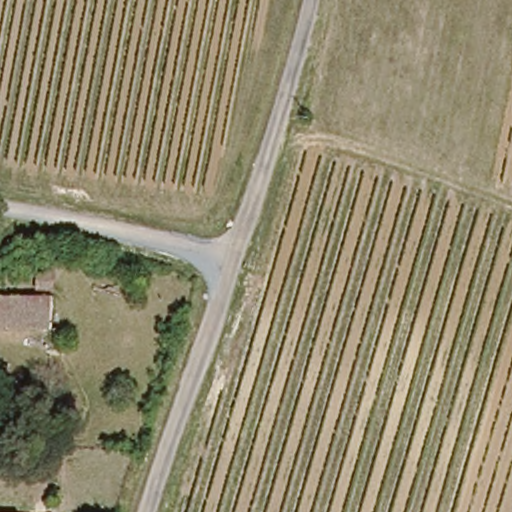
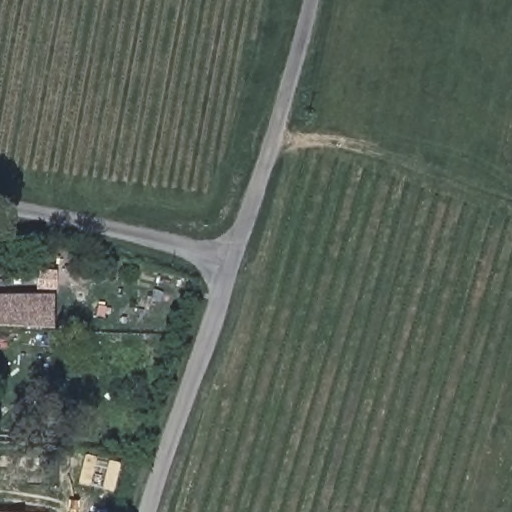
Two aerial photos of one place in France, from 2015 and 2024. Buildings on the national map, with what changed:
unchanged [(54,292),(42,291),(43,272),(53,272),(54,292)]
unchanged [(0,296),(53,295),(53,327),(0,327),(0,296)]

